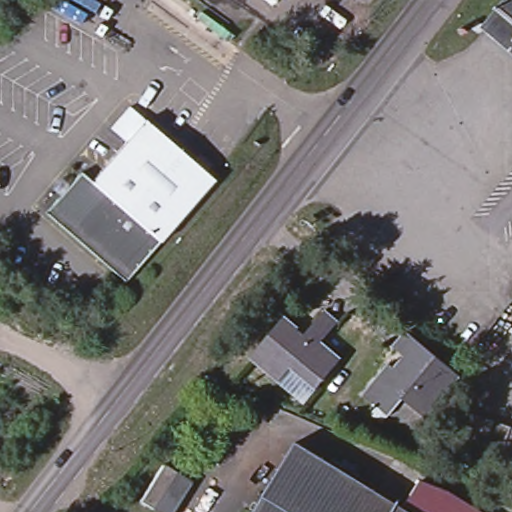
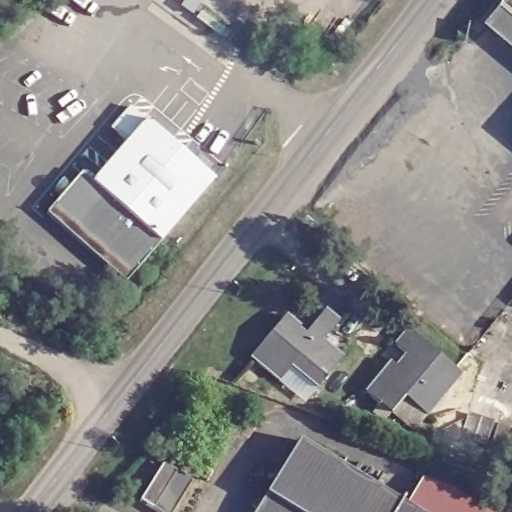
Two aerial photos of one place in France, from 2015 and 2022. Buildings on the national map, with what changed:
unchanged [(504,0),(512,0),(512,53),(482,27),(504,0)]
unchanged [(210,176),(99,182),(132,145),(116,131),(134,111),(149,125),(150,124),(210,176)]
unchanged [(50,216),(65,200),(58,194),(69,181),(75,187),(80,183),(86,175),(94,182),(97,185),(165,245),(130,286),(50,216)]
unchanged [(99,182),(210,176),(218,184),(165,245),(97,185),(99,182)]
unchanged [(299,327),(296,330),(304,337),(326,310),(339,320),(322,340),(342,356),(316,386),(292,366),(280,380),(252,356),(285,316),(299,327)]
unchanged [(398,368),(409,355),(395,344),(407,330),(459,375),(424,415),(402,396),(390,411),(365,390),(390,361),(398,368)]
unchanged [(424,512),(253,512),(300,435),(424,512)]
unchanged [(173,512),(151,512),(139,505),(160,468),(189,485),(173,512)]
unchanged [(496,512),(482,512),(486,506),(496,512)]

